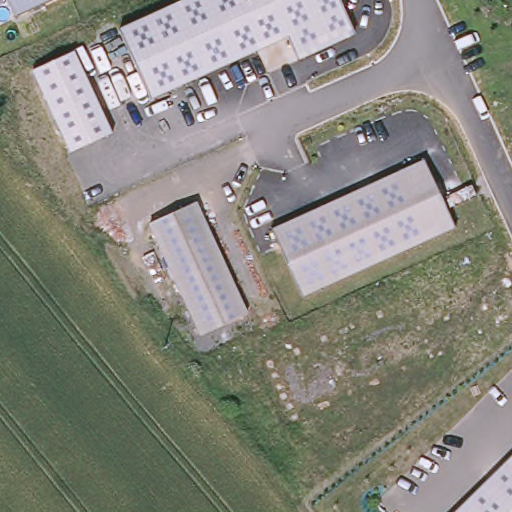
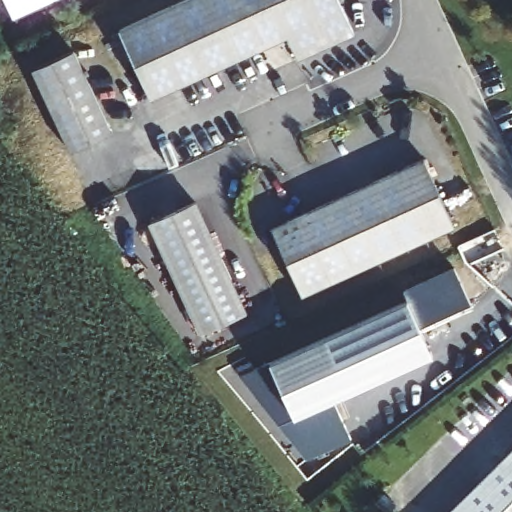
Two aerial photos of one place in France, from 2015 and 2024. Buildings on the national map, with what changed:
unchanged [(7,0),(46,0),(14,15),(7,0)]
unchanged [(119,28),(182,0),(338,0),(354,35),(299,60),(289,37),(151,99),(119,28)]
unchanged [(69,153),(32,71),(74,52),(113,134),(69,153)]
unchanged [(454,229),(303,297),(272,229),(423,160),(454,229)]
unchanged [(247,315),(199,336),(148,224),(196,202),(247,315)]
new [(473,305),(419,326),(434,355),(334,398),(351,440),(307,458),(241,373),(269,361),(408,298),(403,290),(454,268),(473,305)]
unchanged [(512,454),(512,512),(454,512),(512,454)]

